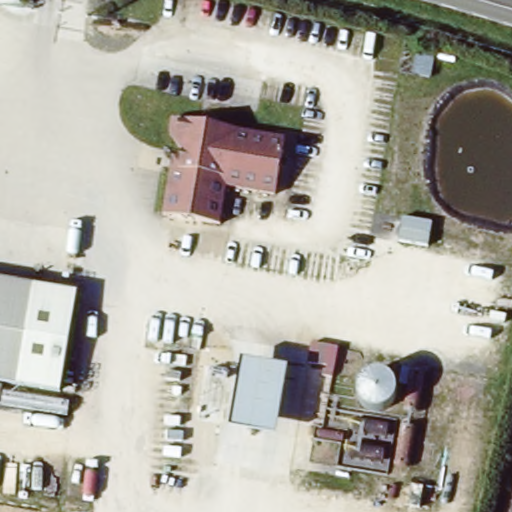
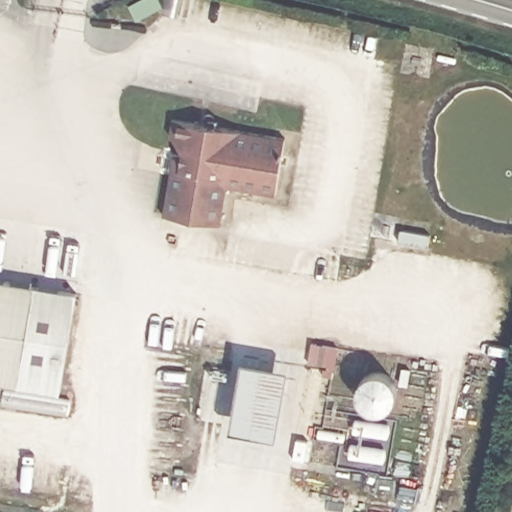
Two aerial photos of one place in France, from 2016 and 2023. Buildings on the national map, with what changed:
unchanged [(267,151),(168,135),(172,111),(272,127),(267,151)]
unchanged [(282,193),(227,184),(219,229),(154,218),(168,135),(267,151),(272,127),(293,130),(282,193)]
unchanged [(20,379),(0,376),(0,274),(38,280),(20,379)]
unchanged [(290,370),(279,439),(227,430),(239,362),(290,370)]

